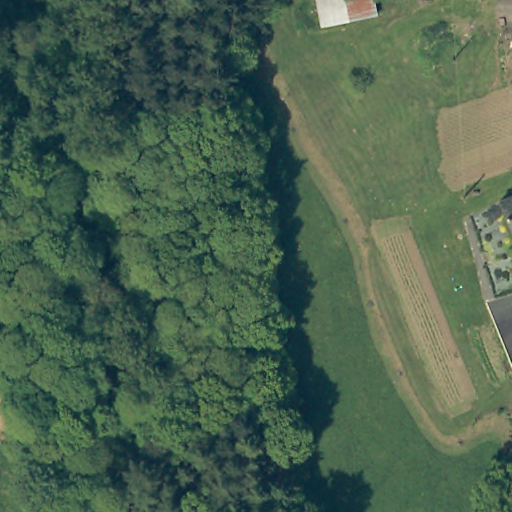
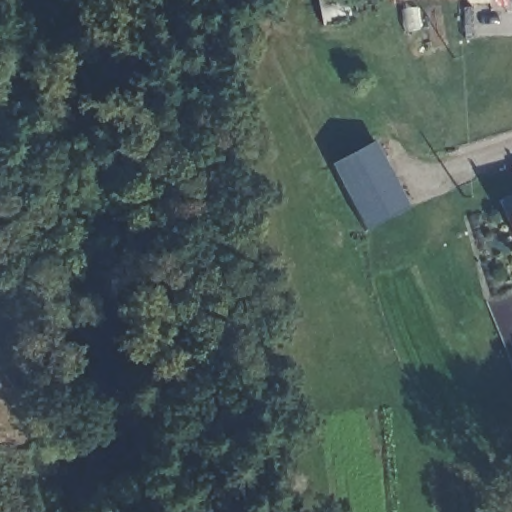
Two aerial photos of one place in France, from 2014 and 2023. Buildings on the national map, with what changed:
unchanged [(312,25),(307,0),(364,0),(367,13),(312,25)]
new [(375,141),(408,206),(365,229),(329,164),(375,141)]
unchanged [(512,195),(512,233),(499,200),(512,195)]

